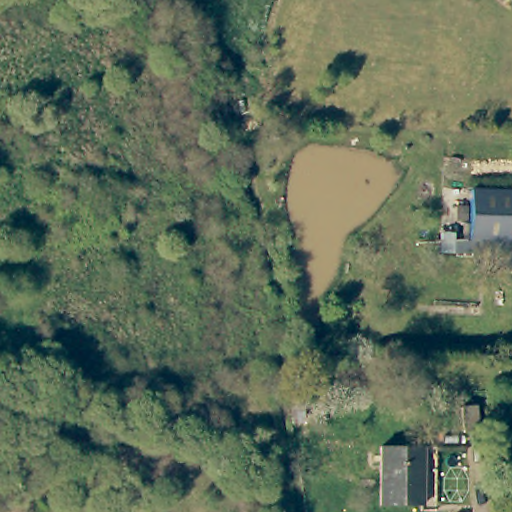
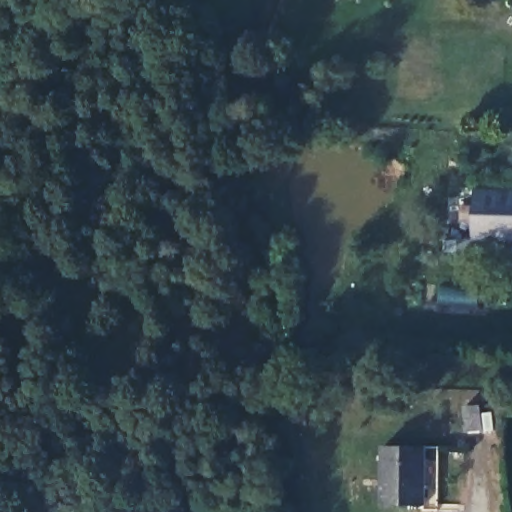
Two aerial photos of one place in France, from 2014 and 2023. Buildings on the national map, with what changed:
unchanged [(472,191),(512,192),(512,242),(471,241),(472,191)]
unchanged [(481,270),(481,252),(455,252),(456,241),(471,241),(512,242),(512,270),(481,270)]
unchanged [(420,445),(420,501),(378,500),(379,444),(420,445)]

